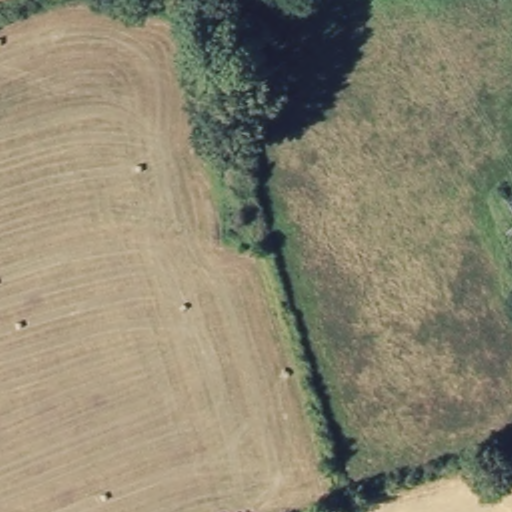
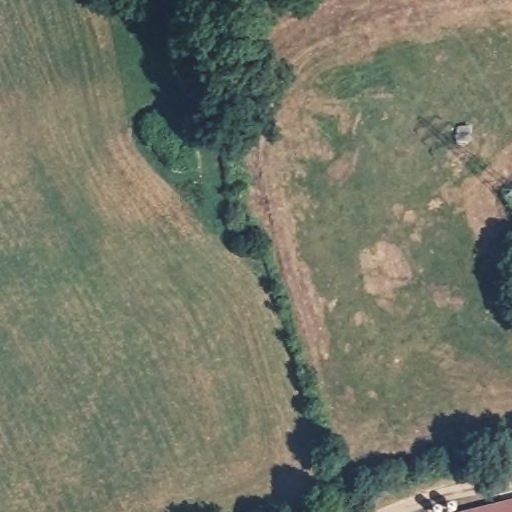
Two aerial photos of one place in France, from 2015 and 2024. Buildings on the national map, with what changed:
demolished [(41,0),(46,0),(41,1),(41,0)]
new [(468,512),(512,501),(512,512),(468,512)]

